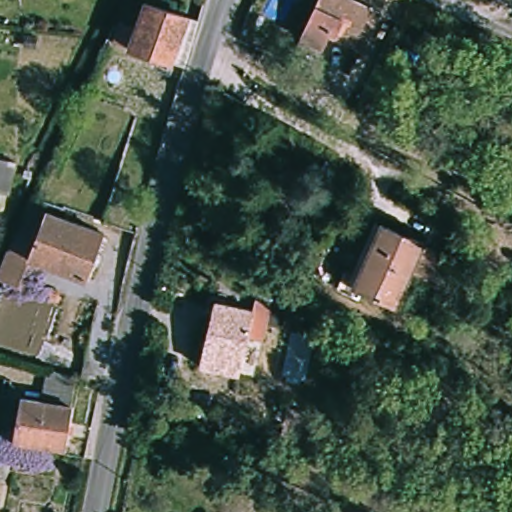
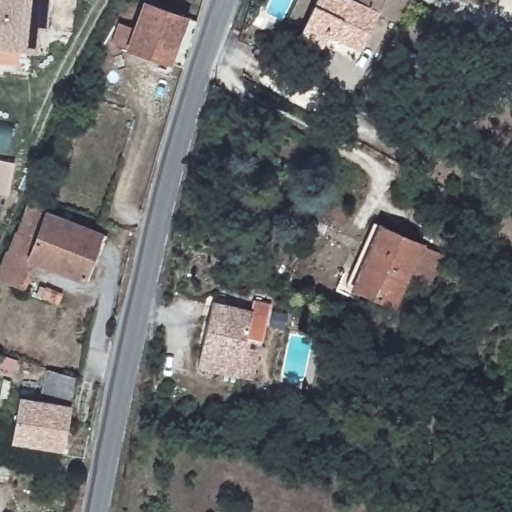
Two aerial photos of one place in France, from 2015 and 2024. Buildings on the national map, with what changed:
new [(47,32),(40,32),(37,52),(0,49),(0,0),(50,0),(47,32)]
unchanged [(191,16),(177,63),(107,37),(115,17),(131,24),(139,0),(147,0),(191,16)]
unchanged [(373,14),(356,50),(323,34),(315,49),(294,39),(312,0),(344,0),(353,4),(355,0),(403,0),(392,23),(373,14)]
unchanged [(0,193),(0,160),(13,162),(8,195),(0,193)]
unchanged [(0,275),(0,263),(31,194),(48,200),(46,207),(28,254),(32,255),(21,283),(0,275)]
unchanged [(28,254),(46,207),(102,230),(84,276),(32,255),(28,254)]
unchanged [(438,250),(425,281),(403,271),(389,303),(355,287),(352,294),(337,287),(369,217),(418,239),(417,240),(438,250)]
unchanged [(237,377),(198,368),(213,302),(252,311),(255,301),(270,305),(262,341),(252,381),(237,377)]
unchanged [(103,352),(96,385),(75,377),(82,347),(103,352)]
unchanged [(71,376),(59,450),(7,442),(15,398),(37,402),(43,367),(71,376)]
unchanged [(297,437),(281,435),(284,421),(277,420),(279,411),(286,412),(287,408),(303,412),(297,437)]

